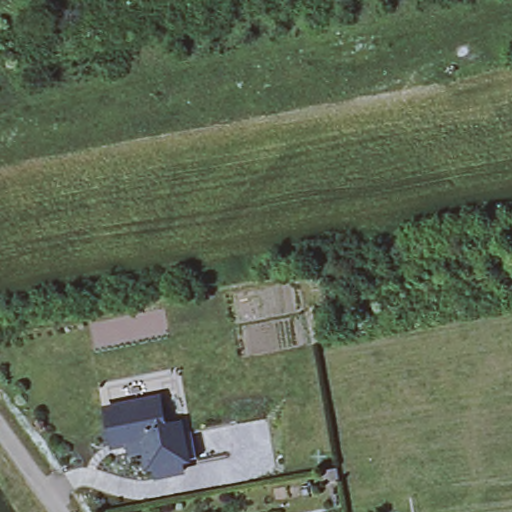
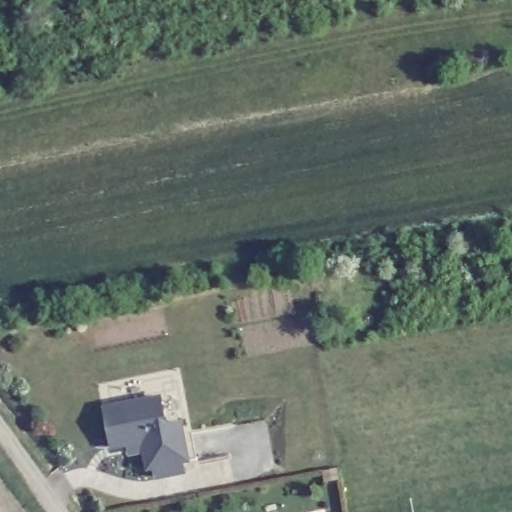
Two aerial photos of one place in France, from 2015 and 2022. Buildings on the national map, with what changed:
unchanged [(165,423),(179,421),(187,458),(180,459),(182,470),(156,476),(154,466),(148,467),(145,450),(135,452),(132,442),(111,446),(103,411),(102,407),(158,395),(160,401),(165,423)]

